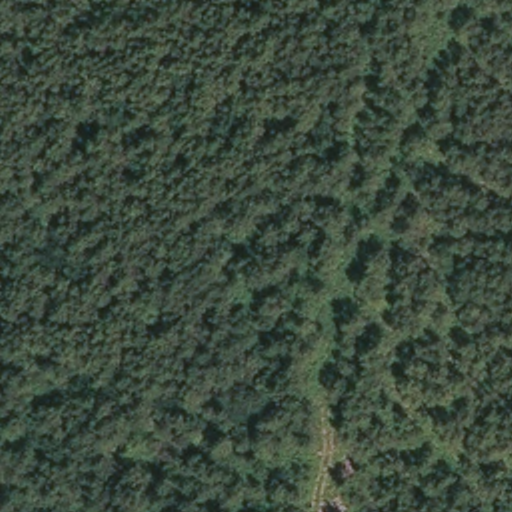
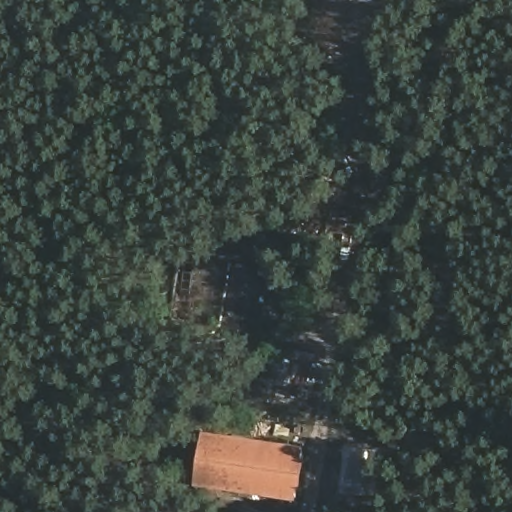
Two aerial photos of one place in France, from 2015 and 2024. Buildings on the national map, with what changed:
new [(304,447),(294,500),(196,486),(205,431),(304,447)]

